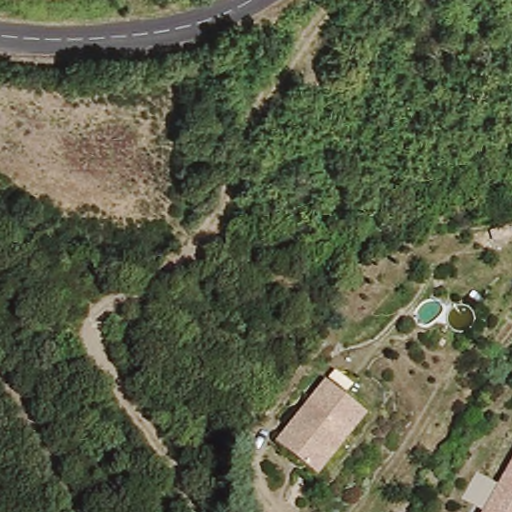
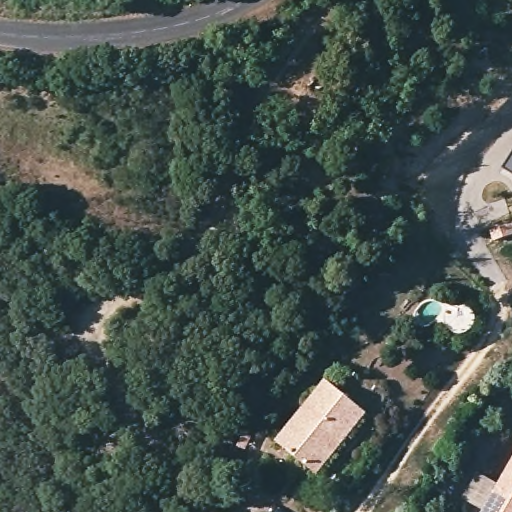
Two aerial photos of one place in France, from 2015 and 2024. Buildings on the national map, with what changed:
new [(512,154),(512,174),(503,169),(512,154)]
unchanged [(325,378),(369,413),(318,473),(277,438),(325,378)]
unchanged [(484,508),(464,499),(477,473),(497,484),(512,458),(512,512),(482,512),(484,508)]

